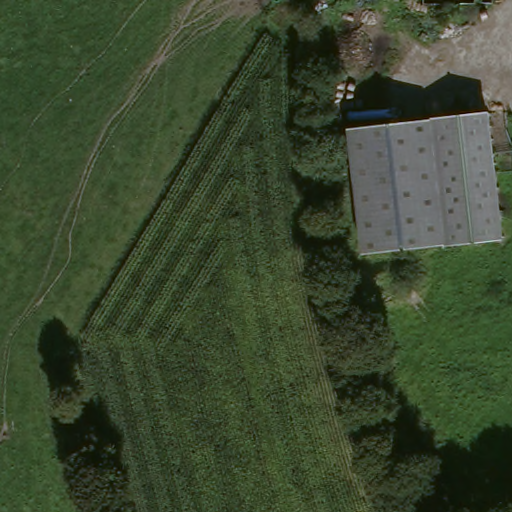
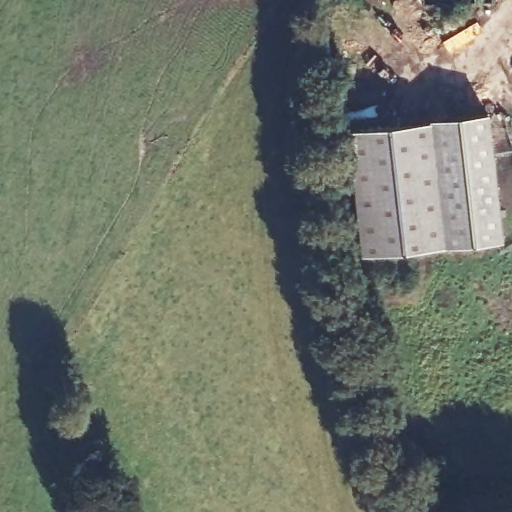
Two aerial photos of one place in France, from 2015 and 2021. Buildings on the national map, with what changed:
unchanged [(368,245),(356,119),(493,106),(506,230),(368,245)]

